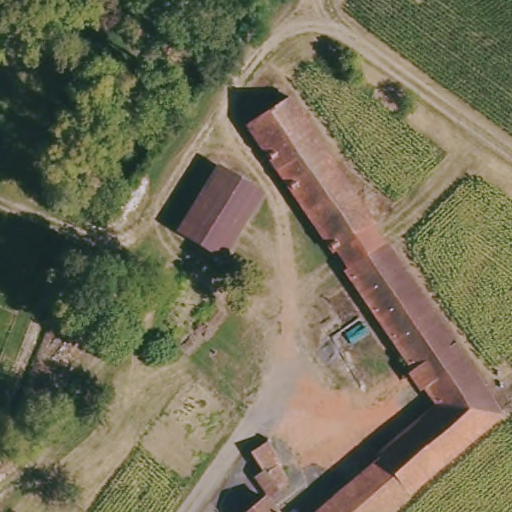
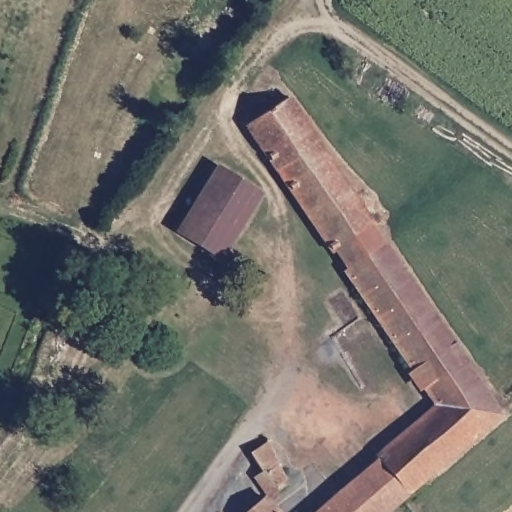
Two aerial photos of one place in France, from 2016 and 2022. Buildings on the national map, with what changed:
unchanged [(370,452),(427,403),(244,119),(290,89),(502,411),(385,512),(308,512),(373,456),(370,452)]
unchanged [(256,191),(214,254),(168,224),(210,159),(256,191)]
unchanged [(255,466),(268,461),(261,437),(278,431),(295,479),(264,490),(255,466)]
unchanged [(239,512),(264,490),(283,512),(239,512)]

